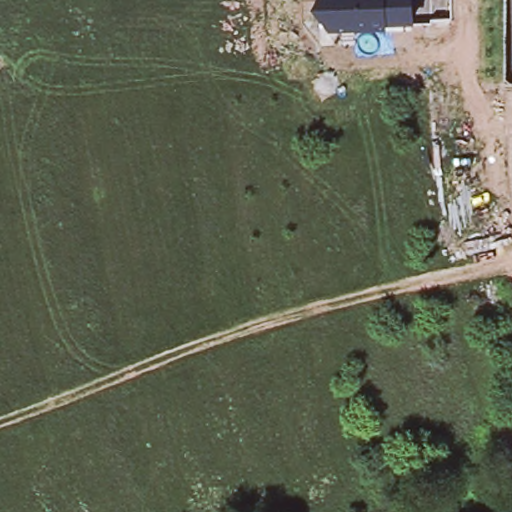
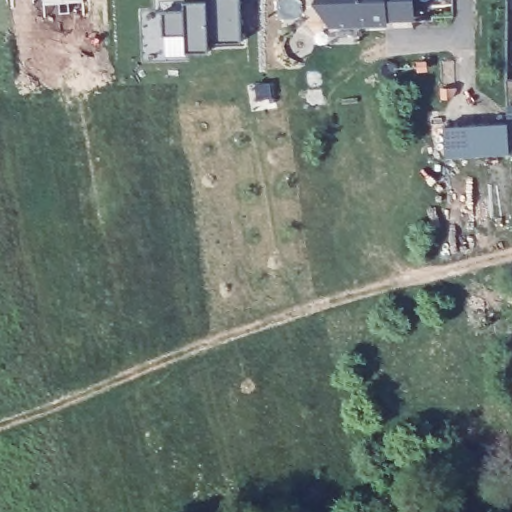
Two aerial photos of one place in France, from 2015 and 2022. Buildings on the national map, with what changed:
new [(44,7),(43,0),(84,0),(84,5),(44,7)]
new [(241,0),(242,40),(210,41),(210,50),(187,50),(186,34),(164,35),(162,10),(185,9),(185,0),(241,0)]
unchanged [(391,20),(391,26),(329,29),(326,0),(415,0),(416,18),(391,20)]
new [(508,123),(507,105),(512,104),(512,154),(510,154),(445,157),(444,127),(508,123)]

